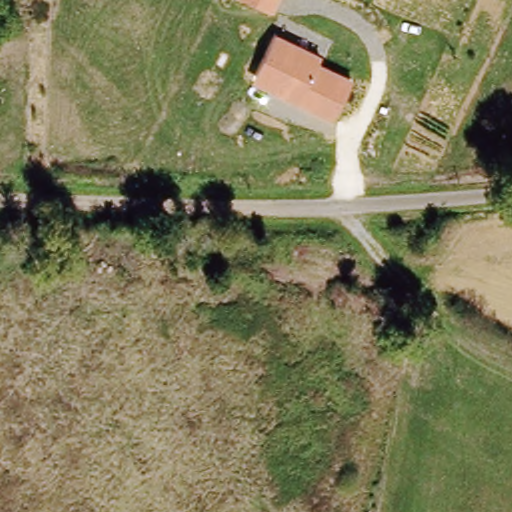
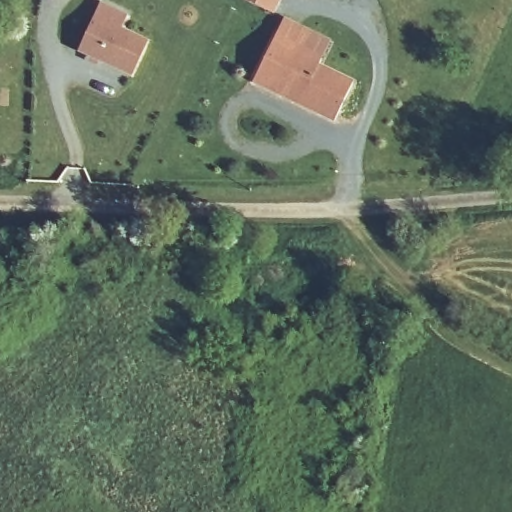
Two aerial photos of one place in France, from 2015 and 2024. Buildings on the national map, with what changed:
unchanged [(244,0),(281,0),(275,14),(244,0)]
new [(122,28),(149,39),(130,77),(78,51),(99,3),(128,18),(122,28)]
unchanged [(353,81),(333,124),(251,82),(276,34),(286,17),(330,40),(322,56),(319,64),(353,81)]

